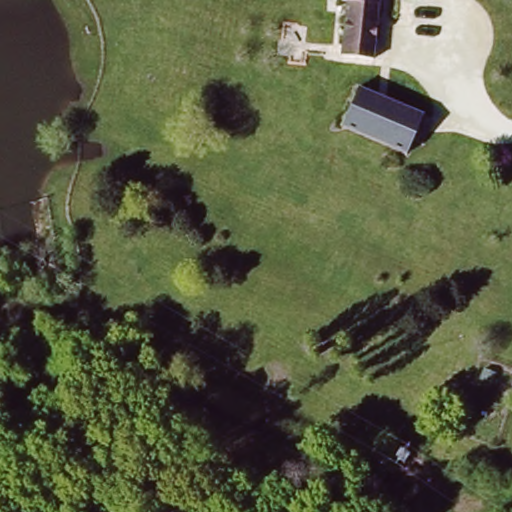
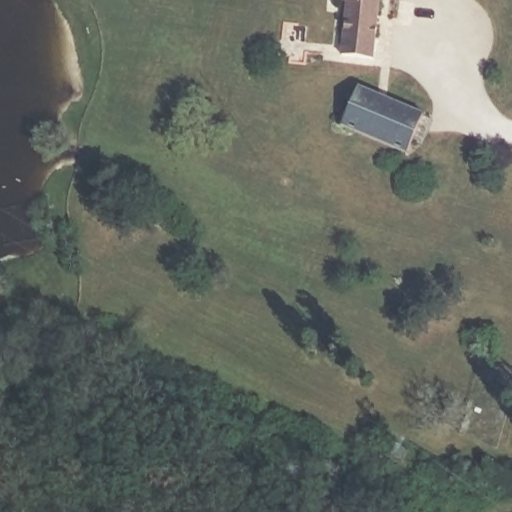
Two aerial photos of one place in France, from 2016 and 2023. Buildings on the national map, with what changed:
unchanged [(374,63),(342,60),(347,1),(342,0),(379,0),(374,63)]
unchanged [(404,152),(341,127),(357,88),(420,113),(404,152)]

